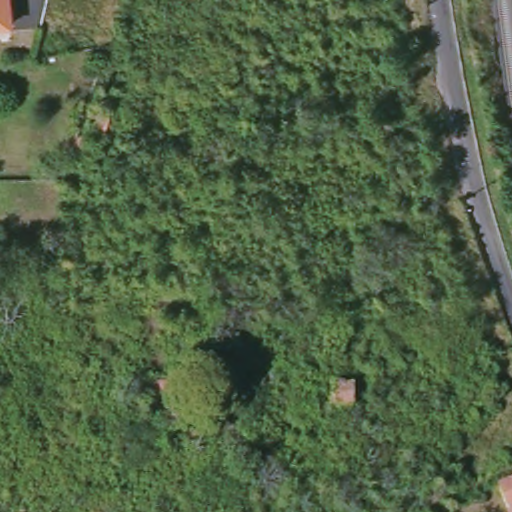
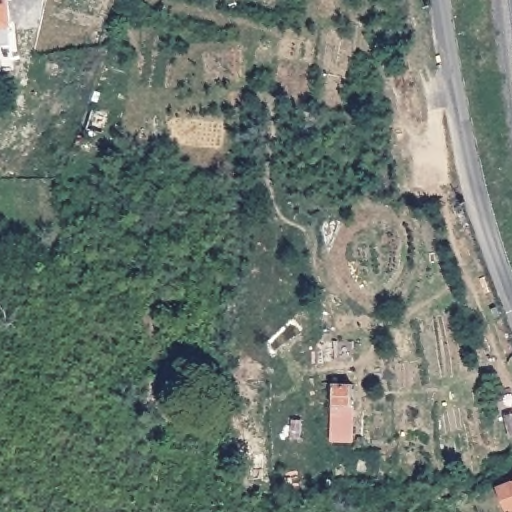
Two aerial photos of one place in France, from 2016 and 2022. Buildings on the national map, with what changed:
unchanged [(10,25),(0,26),(0,0),(8,0),(10,25)]
unchanged [(181,376),(183,413),(143,415),(143,377),(181,376)]
new [(330,442),(332,405),(332,383),(352,384),(352,405),(354,442),(330,442)]
unchanged [(512,512),(511,512),(502,488),(512,485),(512,512)]

